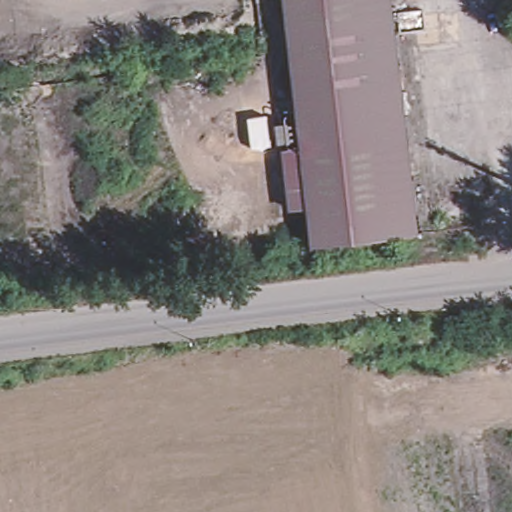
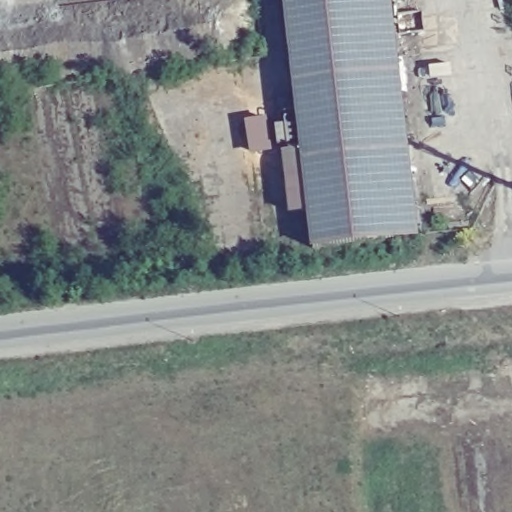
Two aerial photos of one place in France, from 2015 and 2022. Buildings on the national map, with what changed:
unchanged [(414,238),(306,250),(291,105),(281,27),(279,0),(385,0),(389,36),(394,70),(414,238)]

